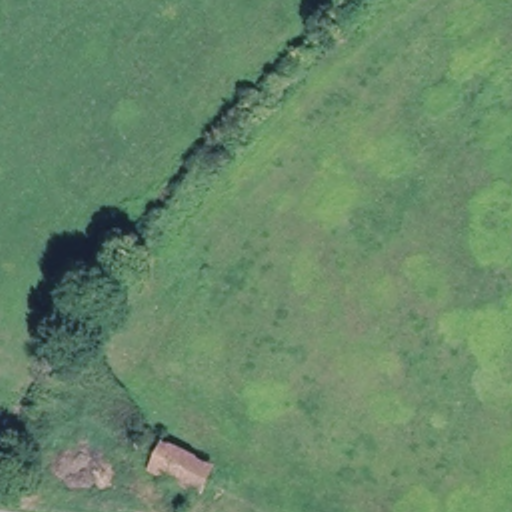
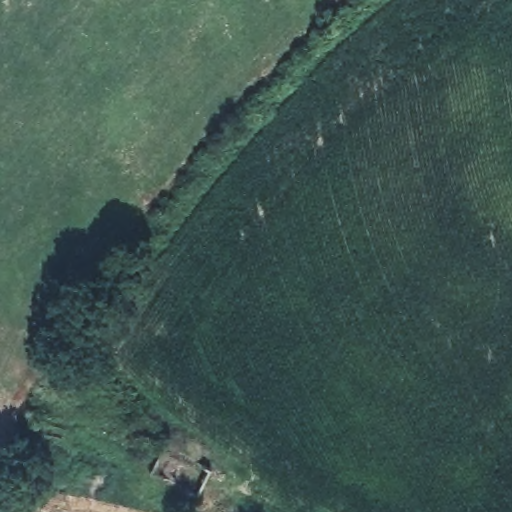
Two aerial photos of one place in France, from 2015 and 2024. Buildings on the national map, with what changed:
unchanged [(153,471),(164,443),(214,464),(202,493),(153,471)]

